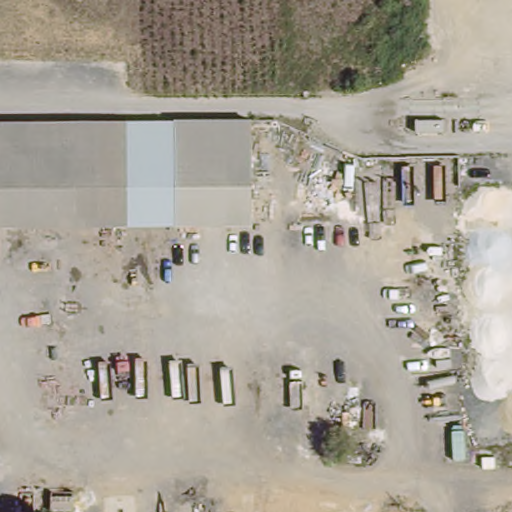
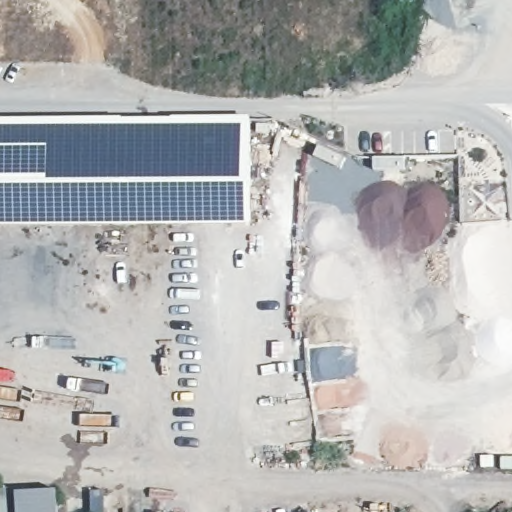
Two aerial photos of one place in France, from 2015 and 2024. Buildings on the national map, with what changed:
unchanged [(168,118),(250,116),(252,228),(168,229),(168,118)]
unchanged [(0,227),(0,120),(168,118),(168,229),(0,227)]
new [(60,512),(18,512),(16,494),(58,490),(60,512)]

